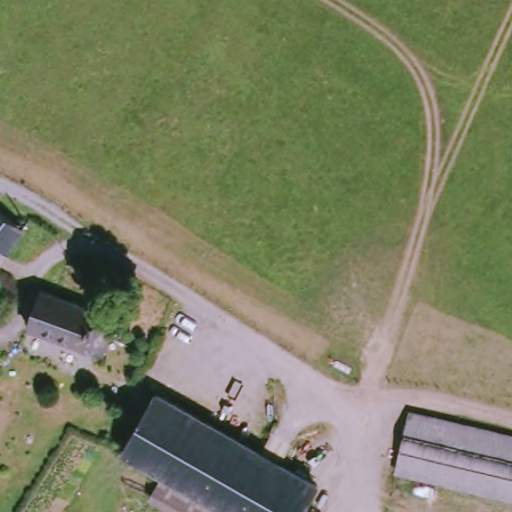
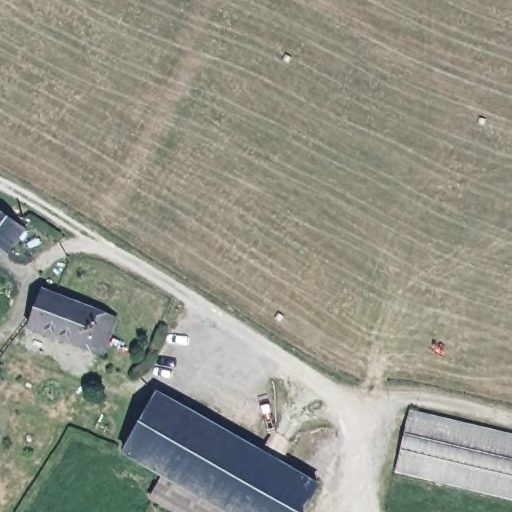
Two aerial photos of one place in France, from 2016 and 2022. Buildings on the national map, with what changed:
unchanged [(0,211),(27,229),(0,261),(0,211)]
unchanged [(34,325),(50,286),(120,315),(105,350),(34,325)]
unchanged [(240,512),(170,474),(130,450),(143,423),(160,393),(324,485),(306,512),(240,512)]
unchanged [(413,411),(512,431),(512,494),(400,472),(413,411)]
unchanged [(170,474),(240,512),(184,512),(159,498),(170,474)]

